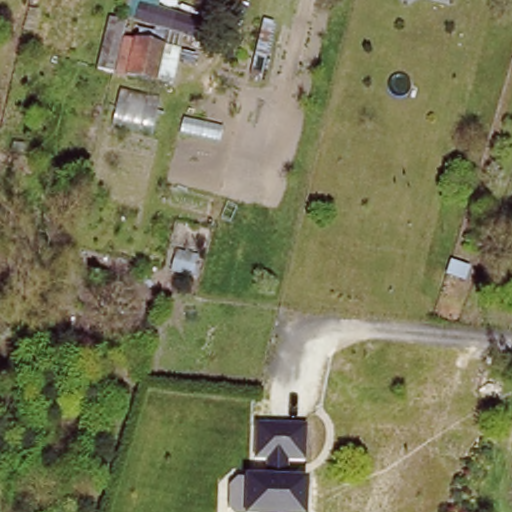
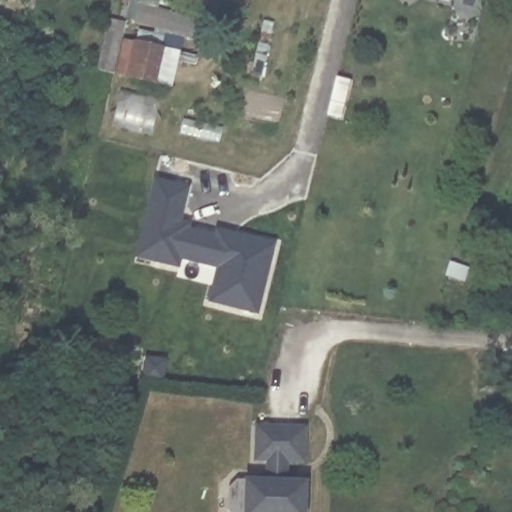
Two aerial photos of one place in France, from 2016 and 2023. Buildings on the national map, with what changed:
unchanged [(102,16),(127,19),(122,39),(183,50),(174,91),(94,71),(102,16)]
new [(13,143),(25,145),(22,155),(11,153),(13,143)]
new [(215,302),(222,269),(184,261),(182,268),(159,264),(167,220),(152,217),(158,182),(192,189),(185,224),(195,226),(193,232),(239,241),(241,235),(279,243),(262,313),(215,302)]
new [(451,261),(469,268),(465,280),(447,274),(451,261)]
unchanged [(255,426),(308,427),(307,463),(292,463),(292,480),(307,480),(307,512),(227,512),(227,488),(234,480),(244,479),(264,479),(264,463),(255,462),(255,426)]

